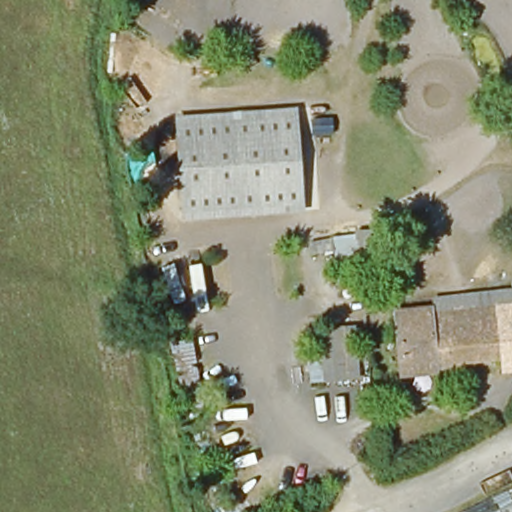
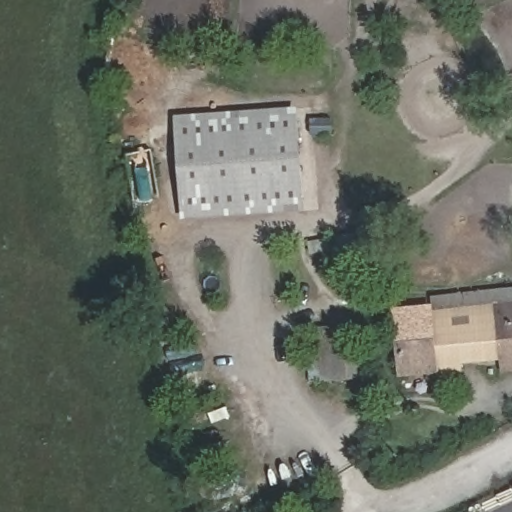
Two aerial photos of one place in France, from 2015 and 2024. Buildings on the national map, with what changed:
unchanged [(296,117),(302,201),(180,210),(174,126),(296,117)]
unchanged [(379,231),(383,278),(360,279),(357,232),(379,231)]
unchanged [(512,289),(512,304),(433,310),(433,308),(432,295),(512,289)]
unchanged [(462,376),(437,378),(436,368),(400,371),(395,312),(433,308),(433,310),(512,304),(512,368),(503,369),(502,357),(461,361),(462,376)]
unchanged [(354,326),(357,377),(311,380),(307,330),(354,326)]
unchanged [(202,408),(179,412),(167,341),(186,338),(202,408)]

